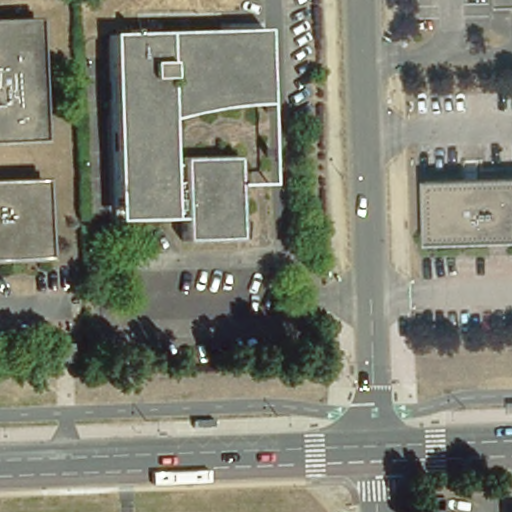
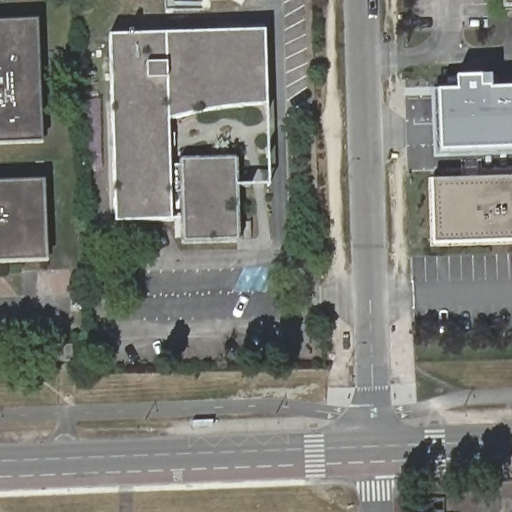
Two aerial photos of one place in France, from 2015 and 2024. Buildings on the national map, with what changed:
unchanged [(505,0),(512,0),(512,2),(506,2),(505,0)]
unchanged [(39,144),(0,144),(0,23),(36,22),(39,144)]
unchanged [(265,104),(247,108),(184,125),(185,169),(197,168),(197,159),(245,157),(249,245),(191,246),(189,224),(115,226),(109,37),(243,35),(262,35),(263,65),(263,77),(265,104)]
new [(442,150),(440,94),(457,93),(457,80),(481,80),(481,91),(512,91),(512,148),(442,150)]
unchanged [(512,177),(512,243),(440,245),(439,179),(512,177)]
unchanged [(47,261),(0,263),(0,182),(46,180),(47,261)]
unchanged [(72,348),(74,365),(55,364),(55,347),(72,348)]

